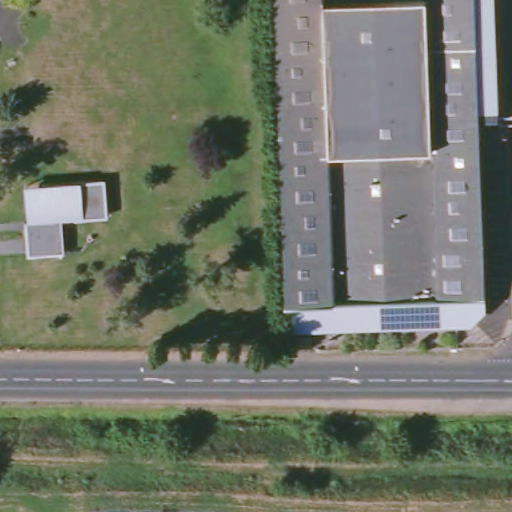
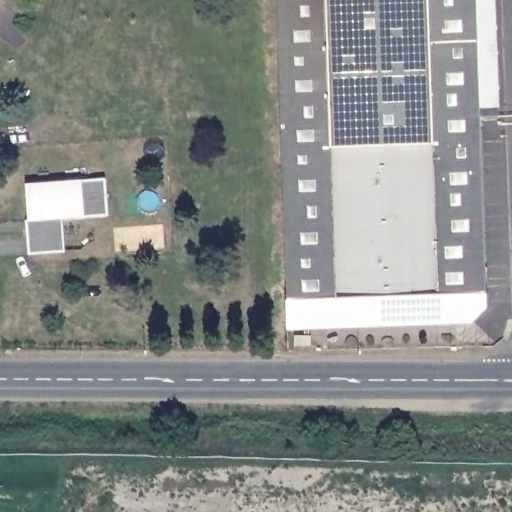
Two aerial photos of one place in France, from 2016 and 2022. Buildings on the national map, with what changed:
unchanged [(471,119),(473,307),(460,321),(287,327),(276,0),(489,0),(490,119),(471,119)]
unchanged [(109,217),(102,218),(60,221),(62,254),(32,257),(30,232),(32,231),(32,224),(29,224),(27,204),(26,188),(40,186),(105,181),(107,199),(109,217)]
unchanged [(309,334),(310,344),(293,346),(292,335),(309,334)]

